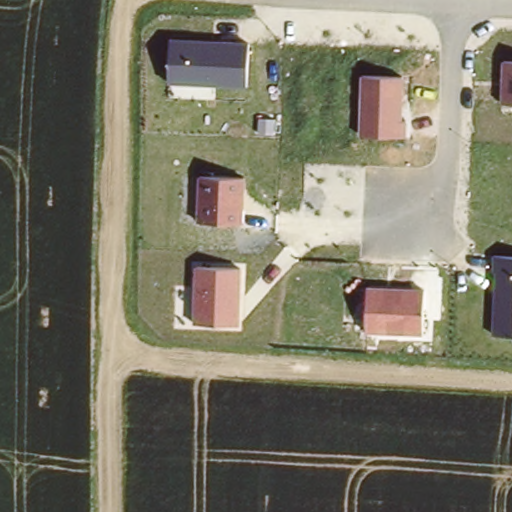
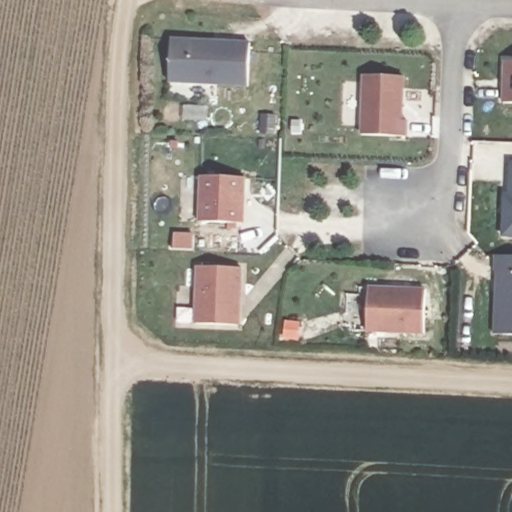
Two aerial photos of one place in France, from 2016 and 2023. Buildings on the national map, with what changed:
unchanged [(249,42),(248,86),(168,83),(171,39),(249,42)]
unchanged [(504,61),(512,62),(512,107),(504,106),(504,61)]
unchanged [(404,76),(403,120),(409,121),(408,138),(359,136),(361,76),(404,76)]
new [(503,194),(507,194),(509,162),(512,162),(512,237),(501,237),(503,194)]
unchanged [(245,177),(243,225),(196,222),(198,176),(245,177)]
unchanged [(512,256),(512,336),(492,335),(494,273),(492,273),(493,256),(512,256)]
unchanged [(240,327),(193,325),(196,267),(242,269),(240,327)]
unchanged [(424,335),(366,332),(368,286),(425,289),(424,335)]

